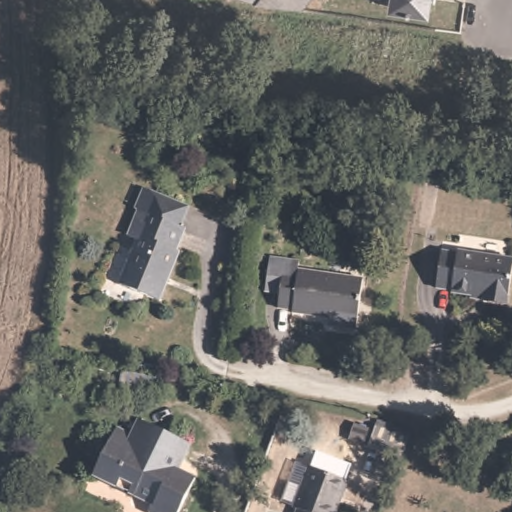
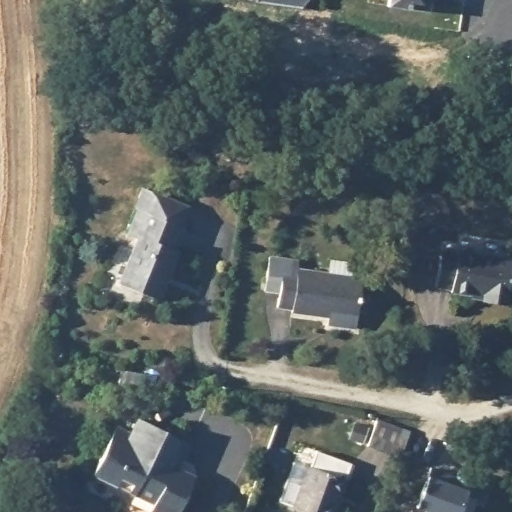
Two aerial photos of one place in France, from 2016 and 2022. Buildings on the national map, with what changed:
unchanged [(251,5),(255,0),(311,0),(300,12),(251,5)]
unchanged [(430,0),(428,14),(388,7),(389,0),(430,0)]
unchanged [(188,204),(180,222),(185,226),(175,247),(178,248),(155,299),(116,282),(137,235),(127,230),(140,205),(136,203),(145,185),(188,204)]
unchanged [(456,249),(456,246),(511,253),(503,301),(478,297),(478,294),(450,290),(450,287),(432,285),(438,246),(456,249)]
unchanged [(306,260),(305,269),(370,282),(361,326),(296,313),(296,310),(282,307),(285,292),(270,289),(277,254),(306,260)]
unchanged [(155,382),(151,397),(117,387),(121,372),(155,382)]
unchanged [(132,432),(141,417),(182,437),(169,462),(188,472),(168,512),(155,512),(144,507),(146,498),(95,473),(119,424),(132,432)]
unchanged [(367,450),(375,425),(408,435),(398,463),(367,450)]
unchanged [(300,505),(295,503),(310,465),(330,472),(347,478),(336,512),(297,512),(300,505)]
new [(431,469),(456,478),(460,470),(488,481),(480,502),(466,497),(460,512),(425,512),(416,508),(431,469)]

